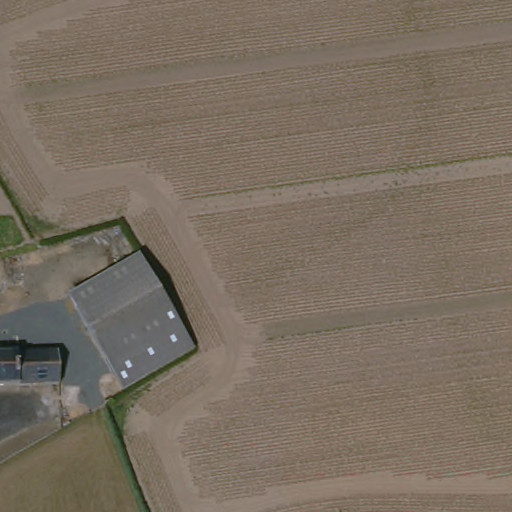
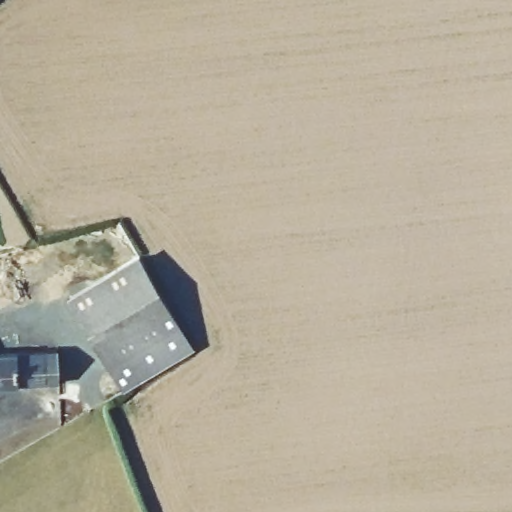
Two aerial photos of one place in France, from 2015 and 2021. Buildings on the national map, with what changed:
unchanged [(72,293),(141,253),(194,347),(122,384),(72,293)]
unchanged [(69,374),(50,375),(50,382),(0,384),(0,351),(69,349),(69,374)]

